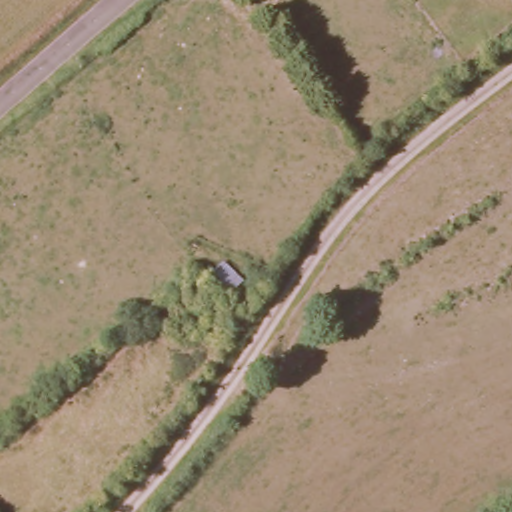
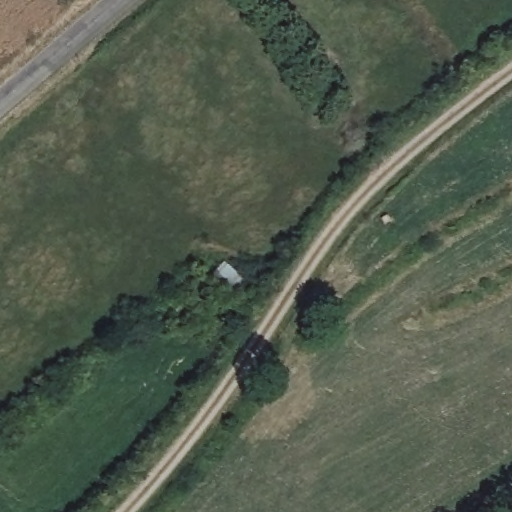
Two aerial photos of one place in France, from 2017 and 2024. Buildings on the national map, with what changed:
unchanged [(224,299),(205,279),(222,264),(245,280),(224,299)]

